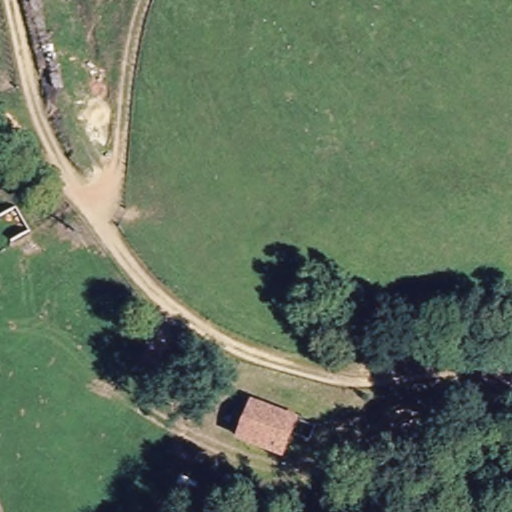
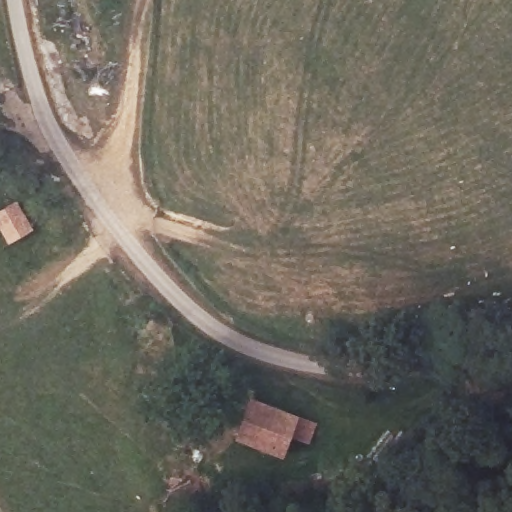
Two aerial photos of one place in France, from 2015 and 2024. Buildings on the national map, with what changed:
unchanged [(283,455),(279,454),(242,439),(255,402),(297,417),(283,455)]

